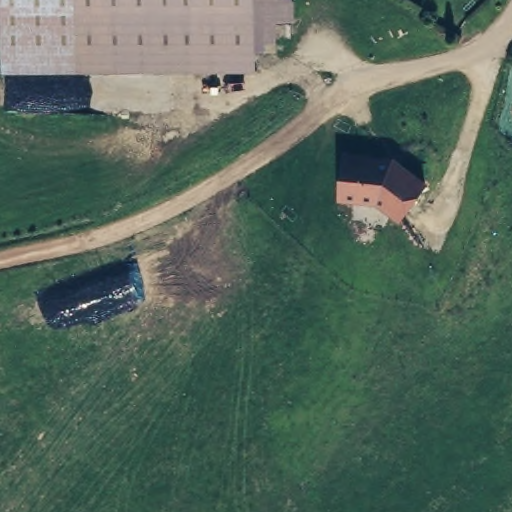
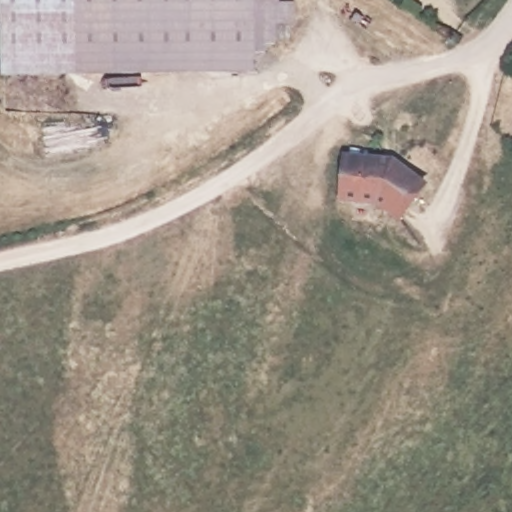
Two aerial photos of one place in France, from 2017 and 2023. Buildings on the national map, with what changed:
unchanged [(273,0),(273,2),(287,2),(287,22),(272,23),(272,45),(255,45),(250,74),(1,70),(0,0),(273,0)]
unchanged [(428,184),(401,222),(376,205),(340,201),(342,158),(342,154),(345,154),(395,158),(428,184)]

